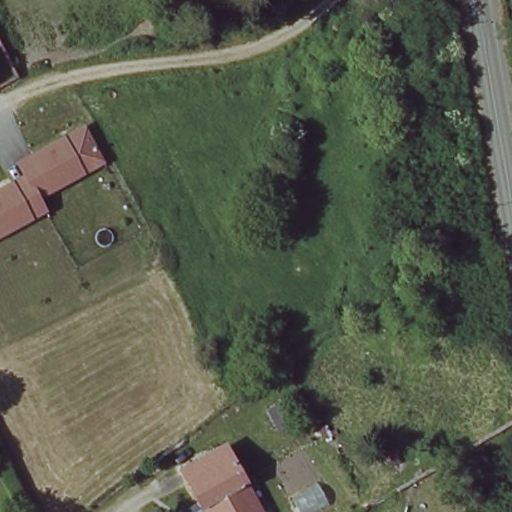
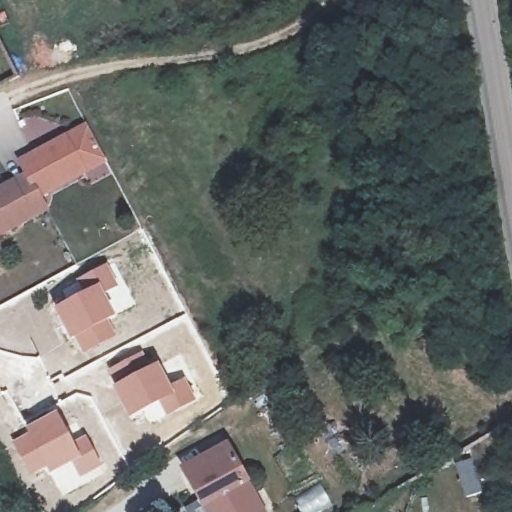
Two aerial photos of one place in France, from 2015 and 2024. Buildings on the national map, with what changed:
unchanged [(53,214),(0,242),(0,190),(23,177),(16,162),(85,123),(108,164),(43,199),(53,214)]
new [(75,280),(106,263),(118,287),(105,293),(115,316),(110,319),(118,337),(81,355),(73,338),(68,340),(52,308),(68,299),(80,293),(75,280)]
new [(170,384),(184,376),(197,401),(150,425),(143,412),(128,419),(113,385),(106,367),(141,349),(151,365),(158,362),(170,384)]
new [(103,467),(78,481),(70,466),(48,476),(44,469),(27,476),(10,441),(26,433),(24,428),(56,412),(72,441),(85,434),(103,467)]
unchanged [(201,506),(182,470),(226,445),(262,512),(204,512),(201,506)]

